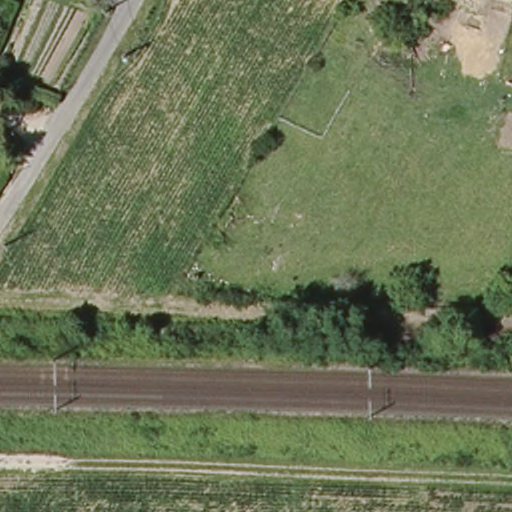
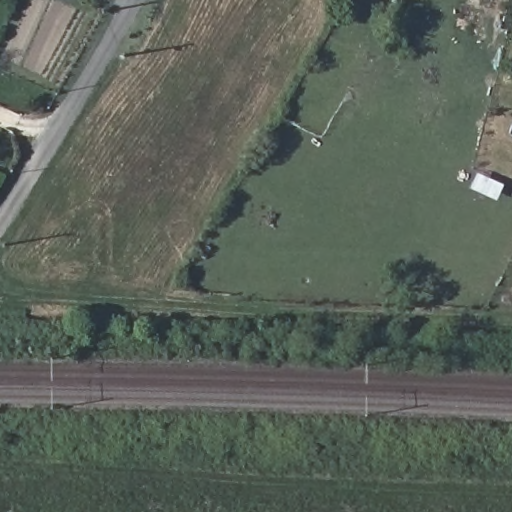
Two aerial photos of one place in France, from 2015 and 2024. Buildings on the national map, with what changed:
unchanged [(141,19),(151,25),(146,34),(135,27),(141,19)]

